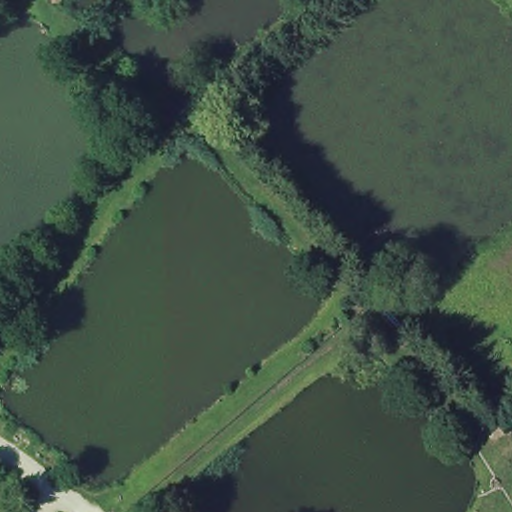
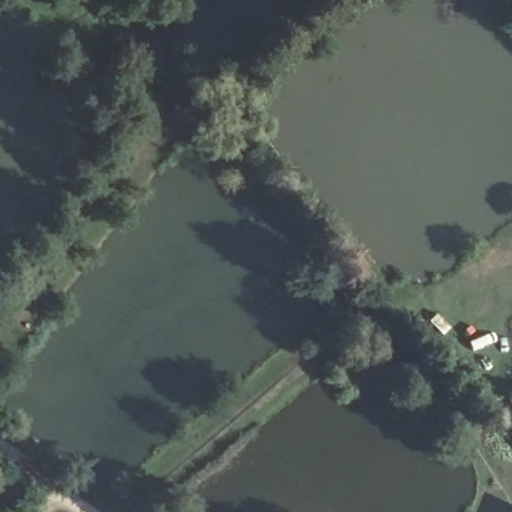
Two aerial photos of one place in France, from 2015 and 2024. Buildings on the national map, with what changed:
unchanged [(512,413),(512,420),(509,417),(512,413)]

